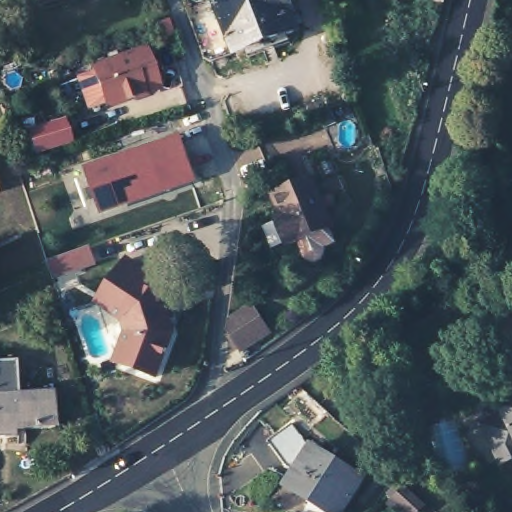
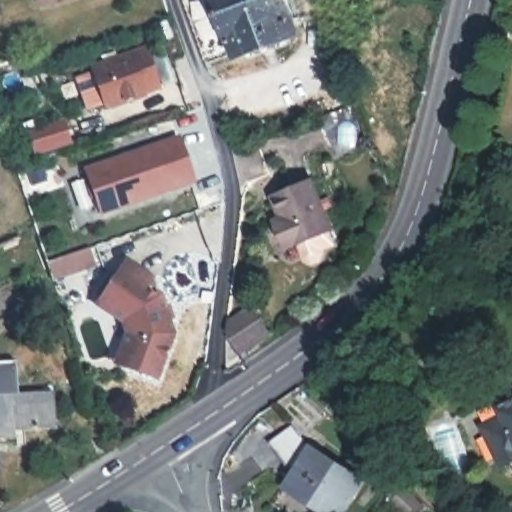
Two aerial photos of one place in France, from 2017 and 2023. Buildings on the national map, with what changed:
unchanged [(233,48),(205,58),(185,0),(216,0),(233,48)]
unchanged [(297,24),(233,48),(216,0),(289,0),(297,24)]
unchanged [(165,94),(106,116),(91,67),(149,43),(165,94)]
unchanged [(72,147),(33,158),(25,132),(65,120),(72,147)]
unchanged [(181,136),(198,187),(103,213),(88,170),(181,136)]
unchanged [(275,215),(285,210),(276,189),(313,173),(333,223),(292,240),(286,242),(275,215)]
unchanged [(87,246),(95,267),(53,282),(46,262),(87,246)]
unchanged [(93,306),(121,264),(168,294),(175,314),(169,317),(177,335),(160,381),(112,363),(122,332),(120,321),(92,306),(93,306)]
unchanged [(230,331),(255,315),(266,335),(240,351),(230,332),(230,331)]
unchanged [(19,389),(0,390),(0,355),(18,354),(19,389)]
unchanged [(54,424),(13,426),(13,433),(0,433),(0,390),(19,389),(51,387),(54,424)]
unchanged [(505,415),(508,406),(512,404),(512,462),(502,466),(483,426),(505,415)]
unchanged [(317,431),(370,465),(345,502),(293,469),(317,431)]
unchanged [(425,502),(414,512),(411,512),(392,494),(405,482),(425,502)]

